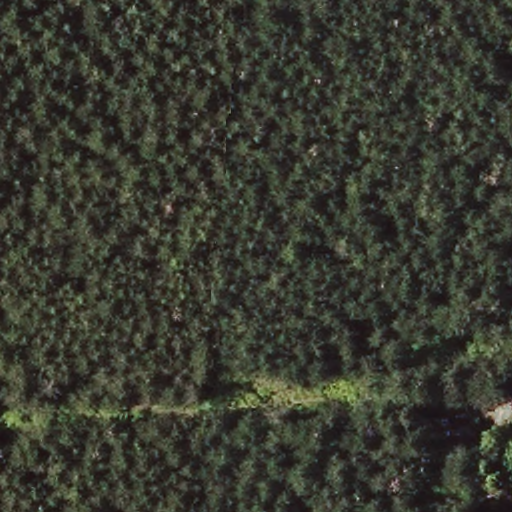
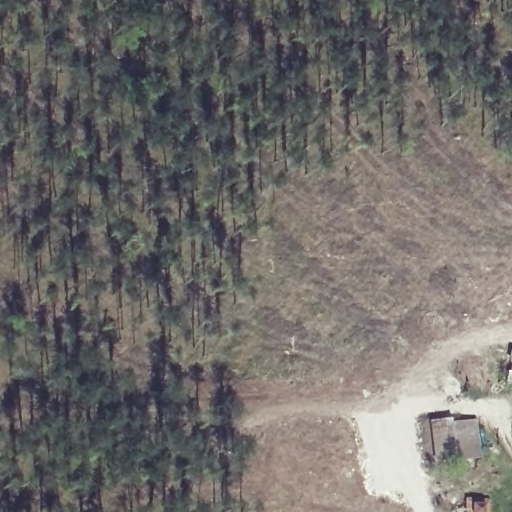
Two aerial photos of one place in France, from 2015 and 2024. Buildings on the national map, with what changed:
new [(452,423),(477,420),(481,452),(434,457),(430,422),(447,419),(452,423)]

